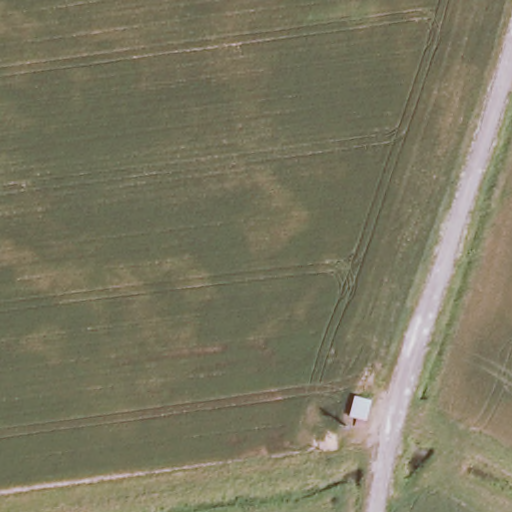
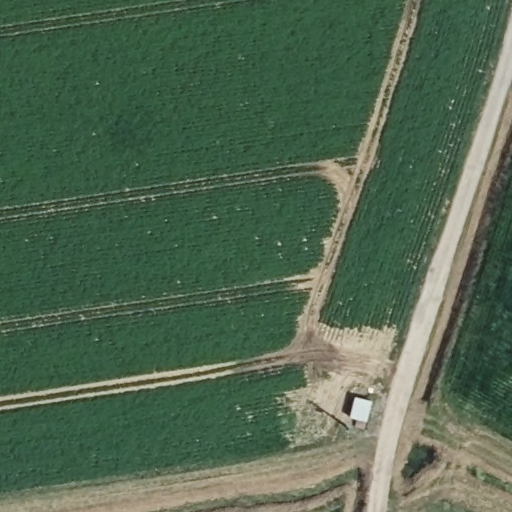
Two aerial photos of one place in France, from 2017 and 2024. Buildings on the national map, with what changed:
unchanged [(368,400),(360,429),(350,428),(353,418),(344,414),(350,394),(368,400)]

